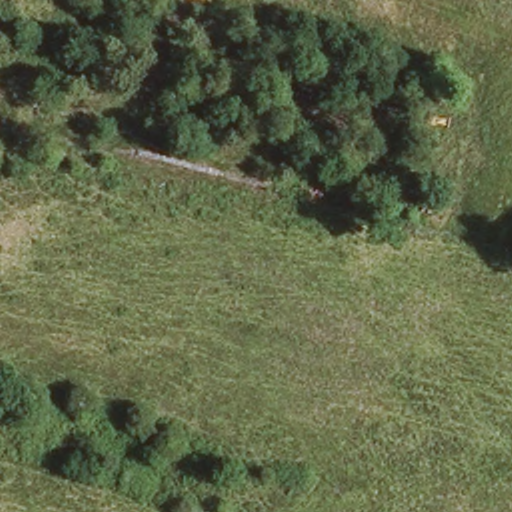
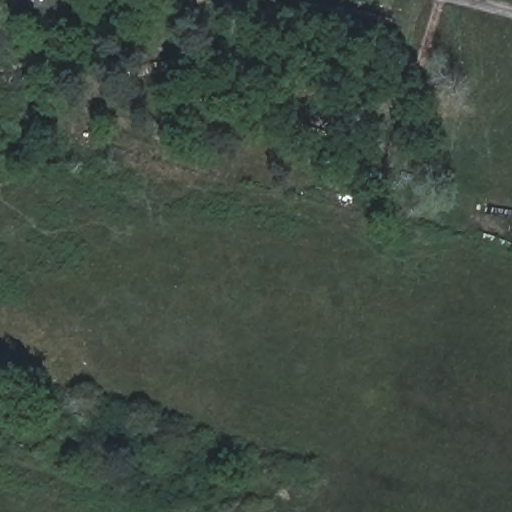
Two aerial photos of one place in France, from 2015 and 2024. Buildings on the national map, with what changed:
[]

